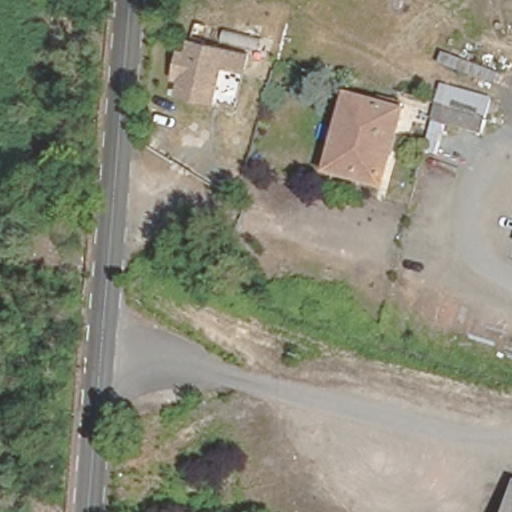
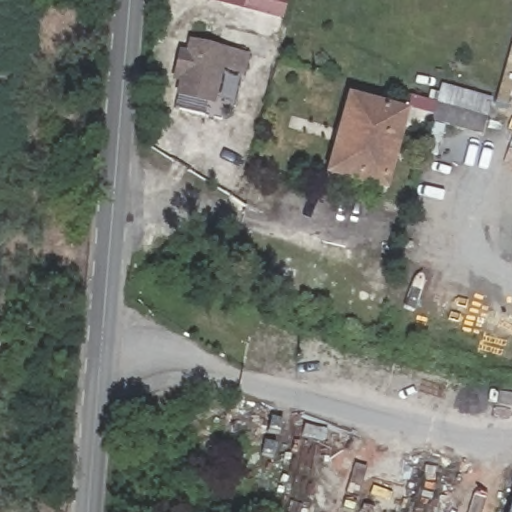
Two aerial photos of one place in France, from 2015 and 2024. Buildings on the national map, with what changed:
new [(218,0),(287,0),(284,16),(218,0)]
unchanged [(177,90),(180,76),(174,74),(180,49),(186,50),(189,34),(229,44),(252,50),(247,69),(225,64),(216,100),(177,90)]
unchanged [(480,135),(432,120),(443,83),(491,98),(480,135)]
unchanged [(404,109),(381,186),(335,174),(356,95),(404,109)]
unchanged [(510,474),(512,474),(512,512),(499,512),(510,474)]

